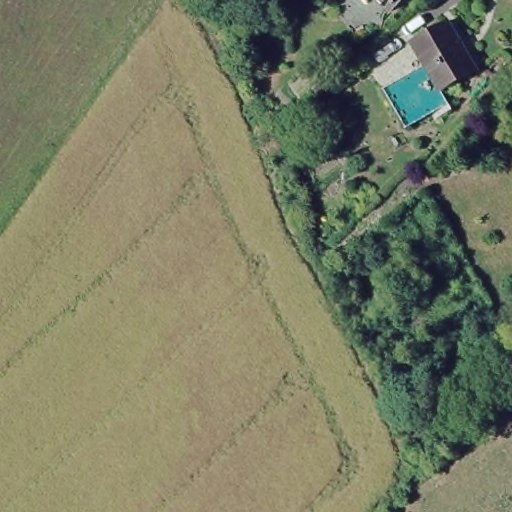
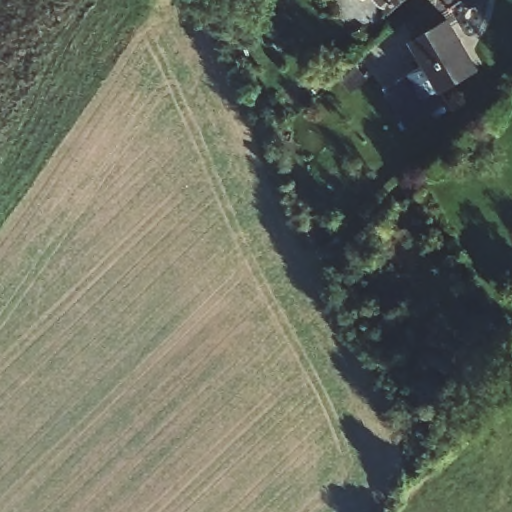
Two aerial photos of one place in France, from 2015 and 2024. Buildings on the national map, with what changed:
unchanged [(390,12),(379,0),(405,0),(390,12)]
unchanged [(435,62),(422,38),(460,20),(486,72),(450,91),(456,104),(410,127),(387,85),(435,62)]

